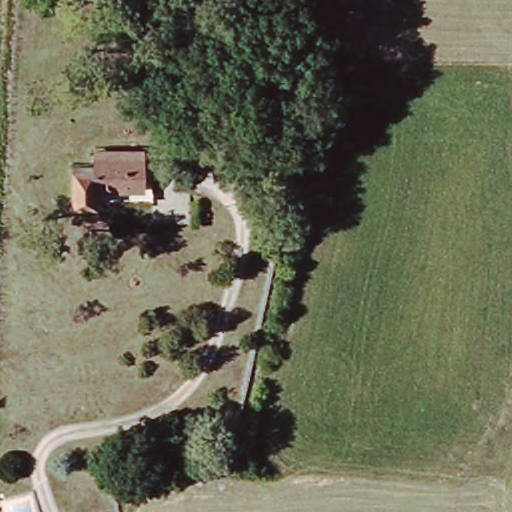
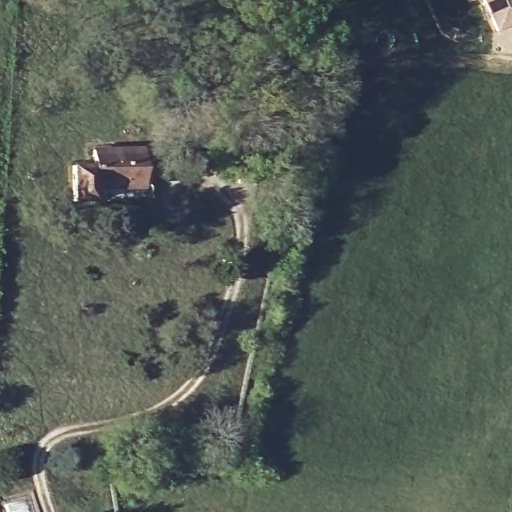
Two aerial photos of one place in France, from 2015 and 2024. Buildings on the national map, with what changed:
new [(512,26),(497,32),(482,0),(512,0),(512,26)]
unchanged [(74,201),(72,165),(94,164),(93,150),(141,148),(144,183),(95,186),(96,200),(74,201)]
unchanged [(258,188),(237,187),(240,154),(261,156),(258,188)]

